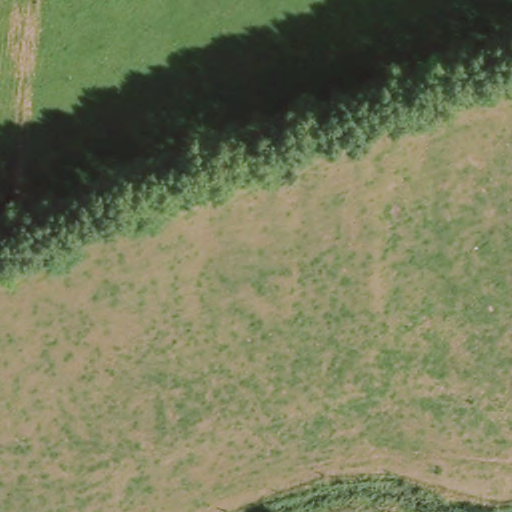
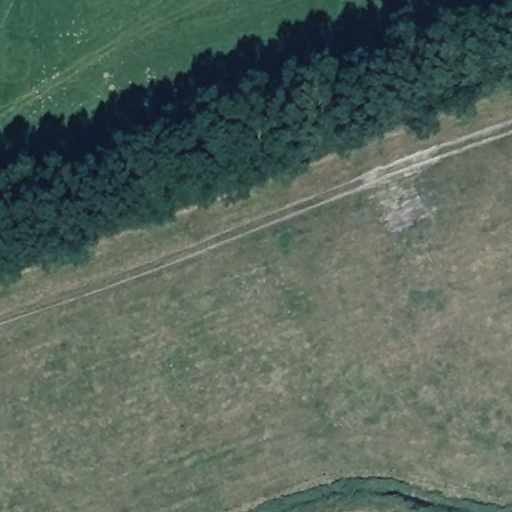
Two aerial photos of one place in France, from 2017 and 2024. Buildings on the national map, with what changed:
[]

